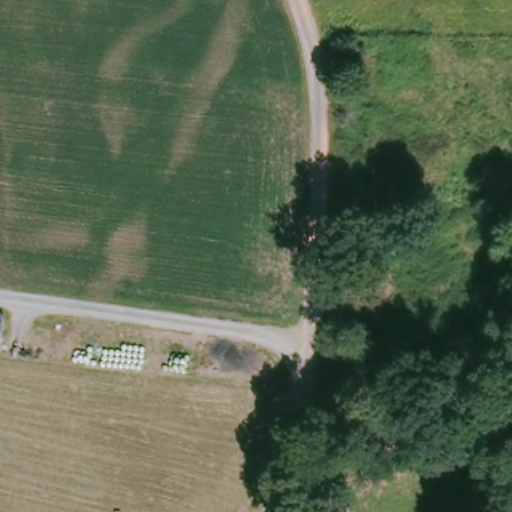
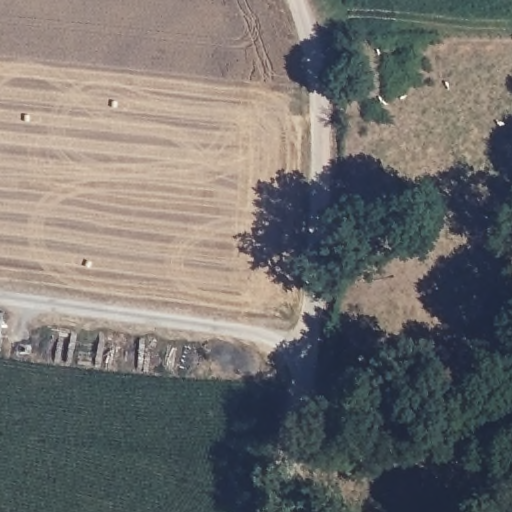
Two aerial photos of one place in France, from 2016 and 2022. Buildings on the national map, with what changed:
unchanged [(0,346),(0,307),(5,308),(2,346),(0,346)]

